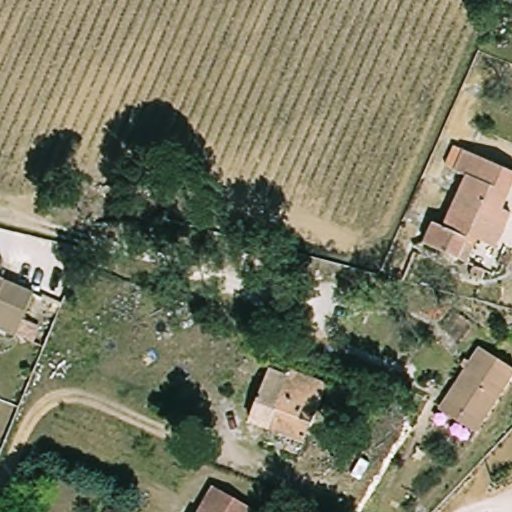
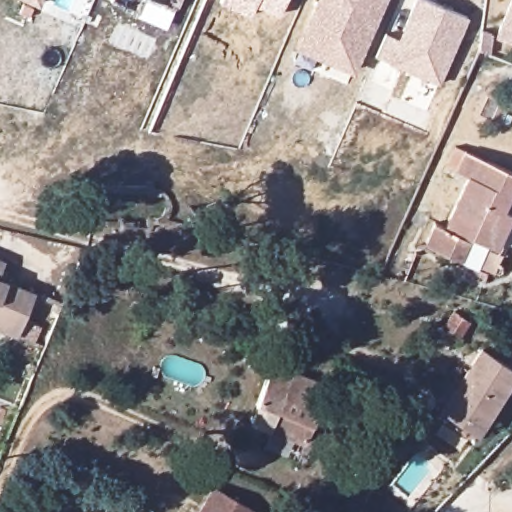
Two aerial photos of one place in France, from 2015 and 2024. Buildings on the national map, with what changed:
new [(25,0),(43,0),(40,7),(25,0)]
new [(175,7),(166,28),(133,15),(135,11),(110,2),(111,0),(181,0),(178,5),(175,7)]
new [(255,5),(250,15),(220,1),(221,0),(285,0),(279,15),(255,5)]
new [(295,49),(316,0),(386,0),(352,74),(295,49)]
new [(439,84),(389,64),(389,62),(375,55),(386,32),(398,38),(414,0),(430,0),(468,16),(439,84)]
new [(512,0),(512,43),(495,35),(510,0),(512,0)]
unchanged [(451,227),(470,183),(460,178),(469,156),(512,174),(512,201),(507,212),(512,214),(512,227),(503,249),(483,241),(479,250),(471,246),(466,261),(430,246),(440,224),(451,227)]
unchanged [(0,329),(0,262),(8,265),(1,280),(39,296),(21,338),(0,329)]
unchanged [(445,411),(447,407),(452,400),(483,350),(512,367),(512,389),(490,424),(489,425),(483,435),(445,411)]
unchanged [(299,383),(301,377),(337,393),(314,448),(260,425),(280,375),(299,383)]
unchanged [(213,487),(259,512),(200,512),(213,487)]

